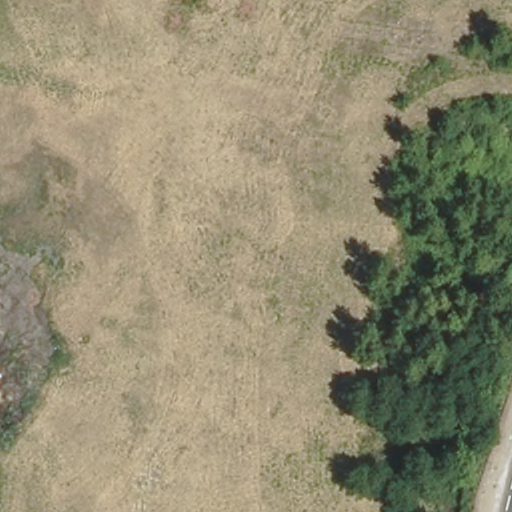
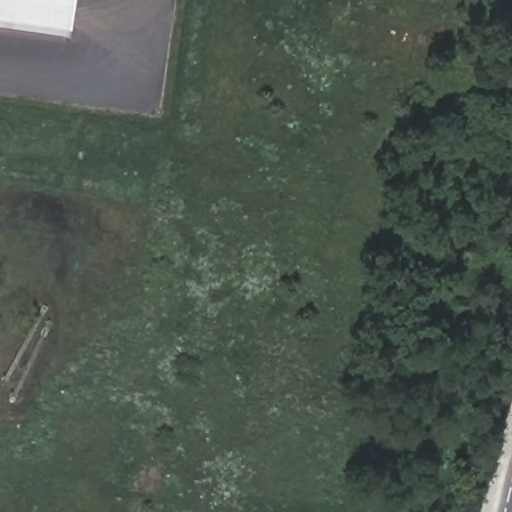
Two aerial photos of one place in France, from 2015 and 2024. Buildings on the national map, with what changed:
new [(0,33),(0,0),(72,0),(66,42),(0,33)]

